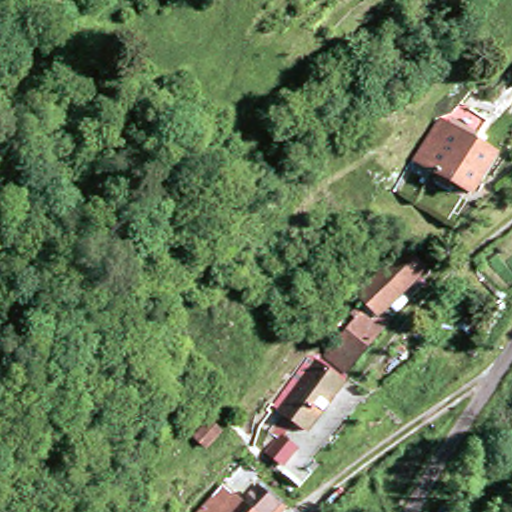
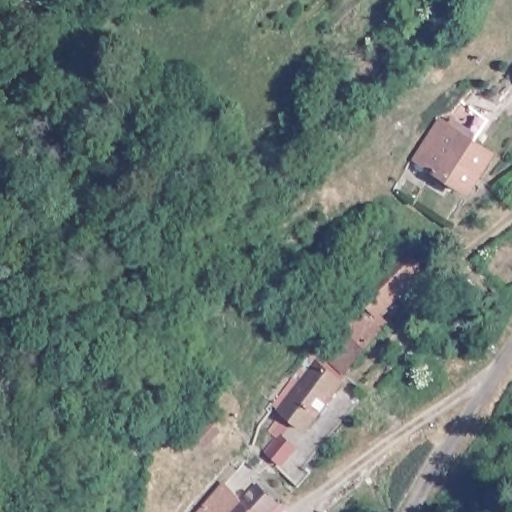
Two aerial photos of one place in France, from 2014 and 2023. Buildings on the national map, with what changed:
unchanged [(442,127),(454,133),(466,111),(487,121),(475,144),(497,155),(473,195),(419,167),(442,127)]
unchanged [(437,235),(463,242),(450,256),(431,242),(437,235)]
unchanged [(360,319),(355,313),(366,300),(360,295),(404,244),(426,264),(382,315),(392,324),(350,373),(329,356),(360,319)]
unchanged [(347,382),(300,445),(279,428),(290,415),(284,410),(322,361),(347,382)]
unchanged [(295,449),(283,465),(269,452),(282,437),(295,449)]
unchanged [(241,499),(255,482),(277,500),(265,512),(230,512),(241,499)]
unchanged [(222,483),(241,499),(230,512),(197,512),(222,483)]
unchanged [(450,510),(449,512),(436,512),(440,504),(450,510)]

